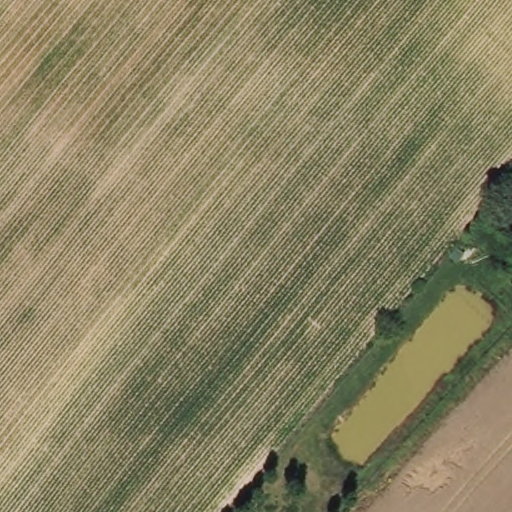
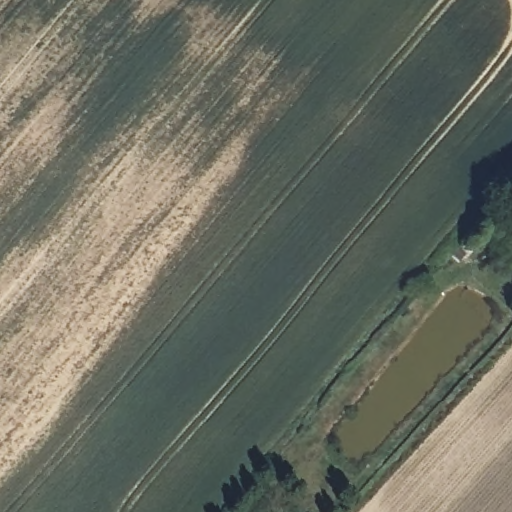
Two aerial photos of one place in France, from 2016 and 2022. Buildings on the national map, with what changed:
[]

